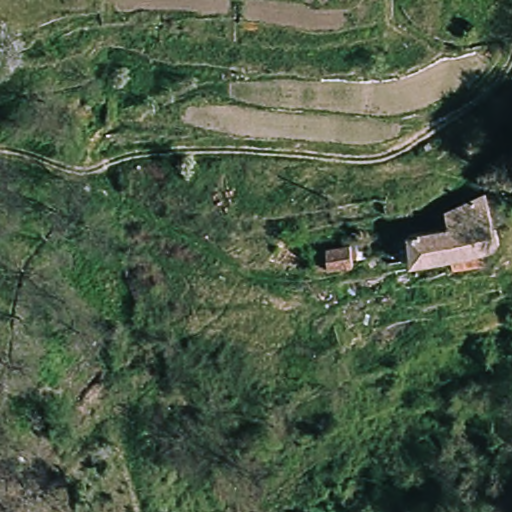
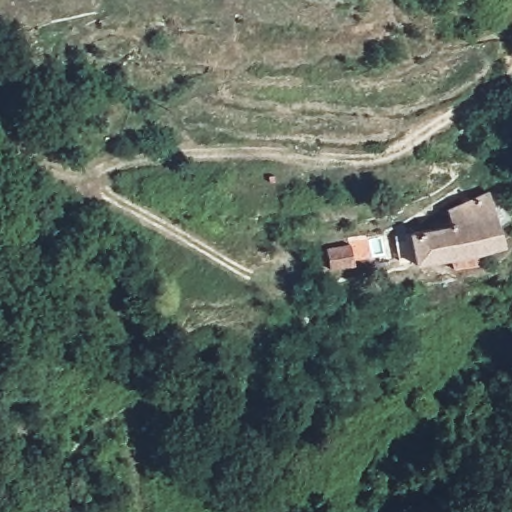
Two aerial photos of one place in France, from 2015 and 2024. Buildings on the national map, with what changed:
unchanged [(417,234),(447,226),(442,209),(485,197),(490,216),(497,247),(481,251),(483,261),(463,267),(460,256),(411,267),(403,233),(416,230),(417,234)]
unchanged [(326,267),(322,250),(353,241),(358,260),(326,267)]

